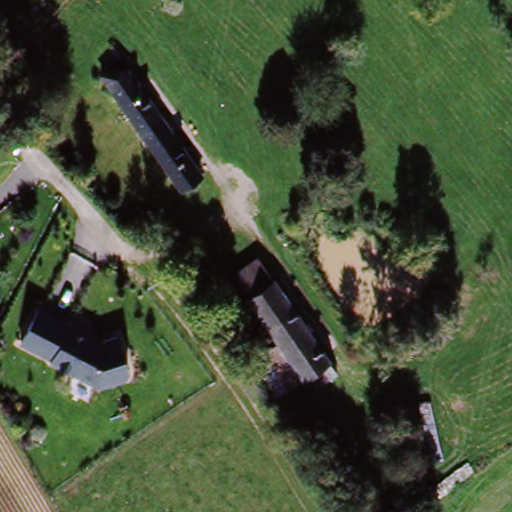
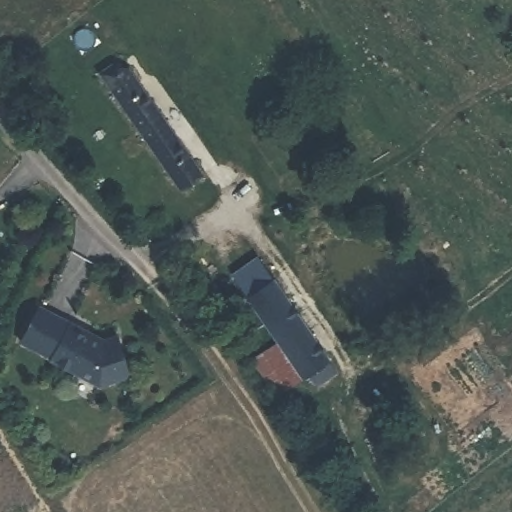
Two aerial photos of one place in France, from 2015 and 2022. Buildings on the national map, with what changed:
unchanged [(103,82),(117,73),(123,82),(135,74),(169,124),(145,140),(103,82)]
unchanged [(209,181),(185,197),(145,140),(169,124),(209,181)]
unchanged [(315,371),(307,359),(300,365),(245,285),(233,267),(256,252),(268,270),(330,360),(315,371)]
unchanged [(102,337),(120,333),(130,374),(128,379),(100,387),(20,343),(39,304),(102,337)]

